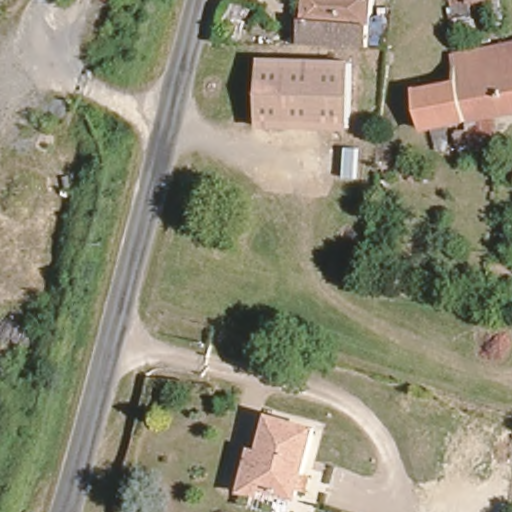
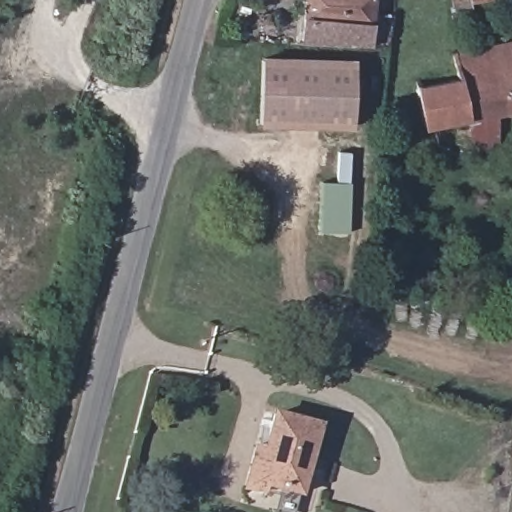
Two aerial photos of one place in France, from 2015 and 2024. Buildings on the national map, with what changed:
unchanged [(306,39),(305,39),(297,39),(298,0),(376,0),(372,41),(306,39)]
unchanged [(446,0),(480,0),(447,9),(446,0)]
unchanged [(460,73),(454,43),(512,32),(512,111),(496,114),(500,146),(466,148),(462,117),(426,129),(418,84),(460,73)]
unchanged [(259,124),(260,59),(349,61),(349,125),(259,124)]
new [(321,232),(321,181),(337,181),(337,151),(349,151),(349,232),(321,232)]
unchanged [(322,422),(303,492),(271,484),(267,497),(247,496),(248,491),(258,453),(266,455),(277,411),(322,422)]

